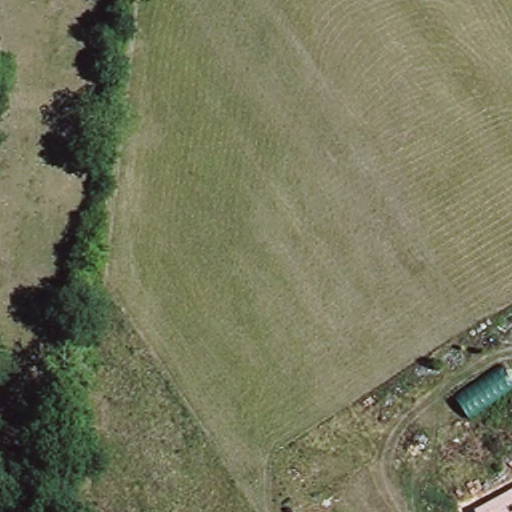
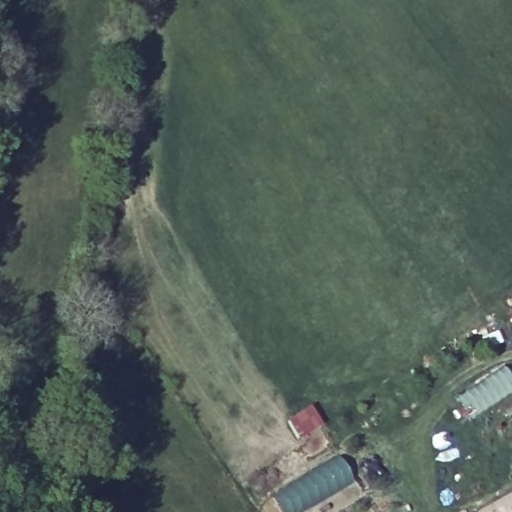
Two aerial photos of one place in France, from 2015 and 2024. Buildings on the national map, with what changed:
unchanged [(512,377),(512,392),(471,421),(458,397),(505,366),(512,377)]
new [(355,480),(298,512),(281,512),(275,502),(295,493),(293,489),(335,461),(339,466),(343,463),(355,480)]
unchanged [(512,512),(489,512),(512,499),(512,512)]

